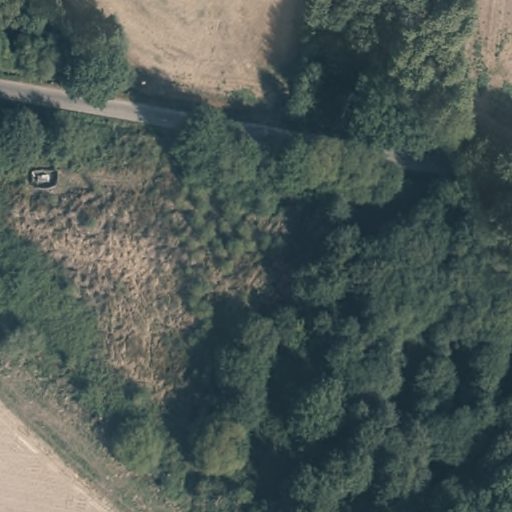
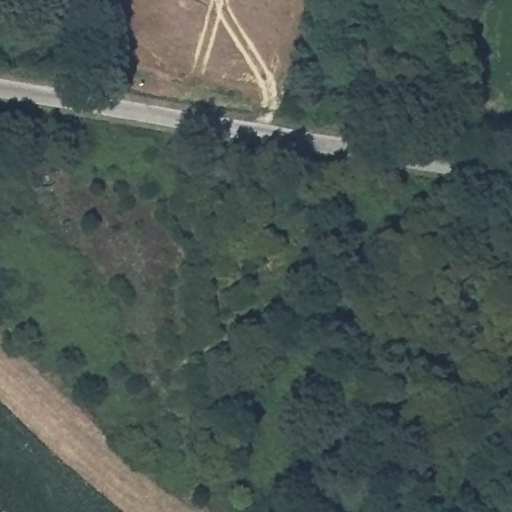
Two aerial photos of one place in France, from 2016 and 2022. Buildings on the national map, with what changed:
[]

